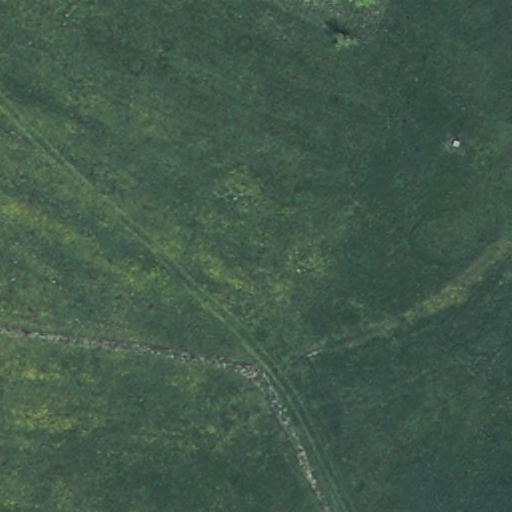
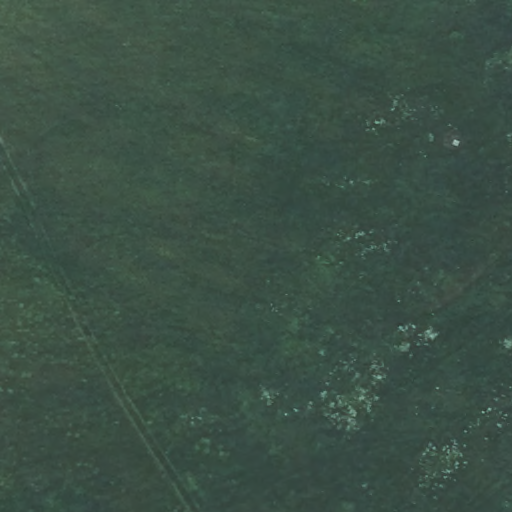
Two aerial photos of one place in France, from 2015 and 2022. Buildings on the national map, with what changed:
[]

